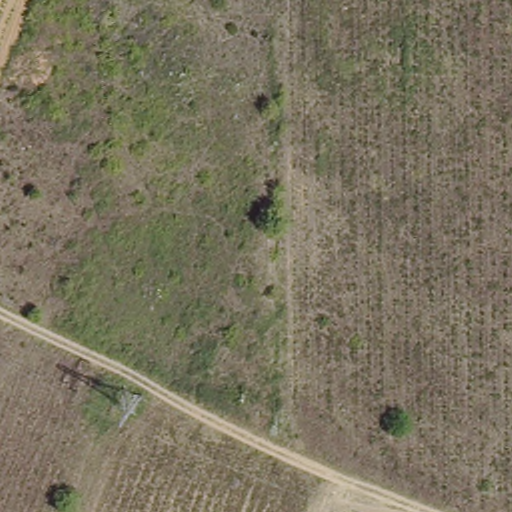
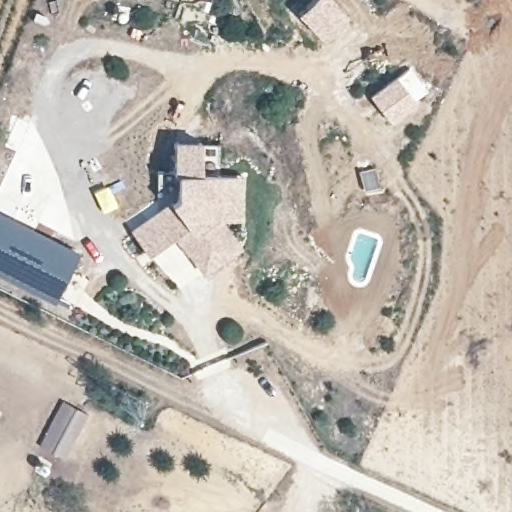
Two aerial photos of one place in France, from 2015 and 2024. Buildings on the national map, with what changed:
new [(173,229),(144,249),(128,225),(158,205),(179,190),(179,167),(175,167),(175,137),(202,137),(219,137),(220,167),(242,167),(242,212),(221,212),(240,241),(204,265),(189,243),(185,246),(173,229)]
new [(79,250),(57,297),(0,269),(0,211),(79,250)]
new [(88,413),(66,460),(40,446),(63,401),(88,413)]

